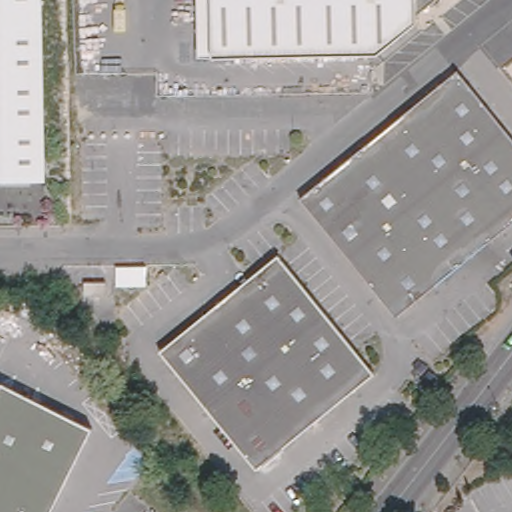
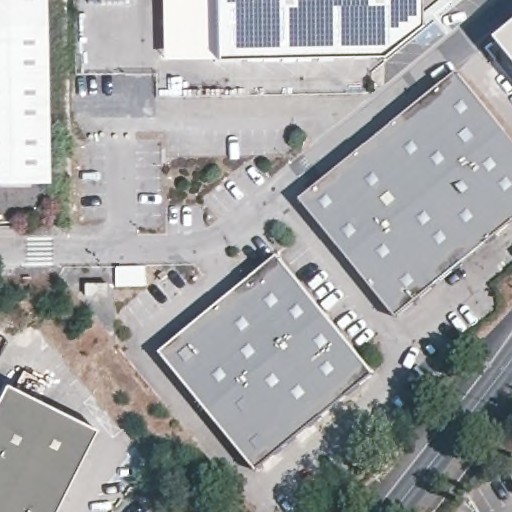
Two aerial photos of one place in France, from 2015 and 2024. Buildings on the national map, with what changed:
unchanged [(0,172),(0,0),(45,0),(49,172),(0,172)]
new [(161,59),(159,0),(204,0),(205,56),(161,59)]
unchanged [(205,56),(204,0),(217,0),(218,56),(205,56)]
unchanged [(422,15),(422,22),(381,54),(218,56),(217,0),(423,0),(423,12),(422,15)]
unchanged [(423,12),(423,0),(441,0),(423,14),(423,12)]
new [(498,37),(512,26),(512,56),(498,37)]
unchanged [(460,70),(512,134),(512,223),(400,315),(306,197),(460,70)]
unchanged [(374,373),(257,469),(162,351),(278,256),(374,373)]
unchanged [(87,291),(108,291),(108,305),(87,305),(87,291)]
unchanged [(8,377),(99,422),(54,512),(0,512),(0,394),(8,377)]

